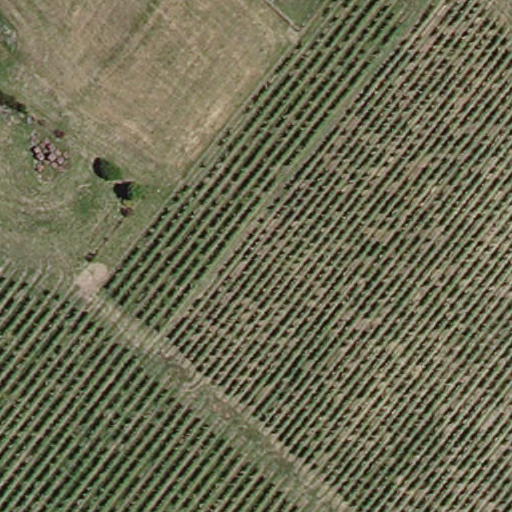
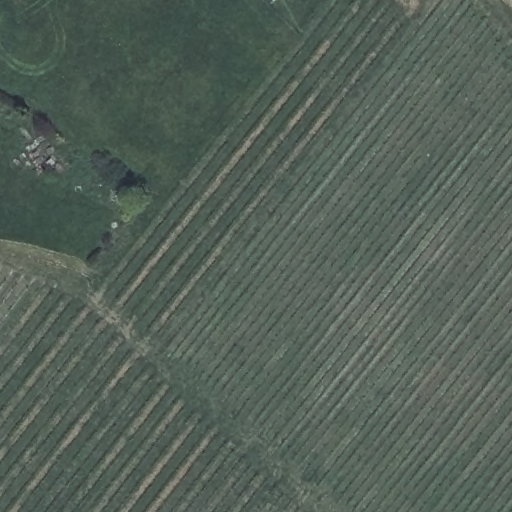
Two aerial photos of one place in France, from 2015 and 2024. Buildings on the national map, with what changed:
unchanged [(0,57),(0,56),(1,56),(0,57)]

